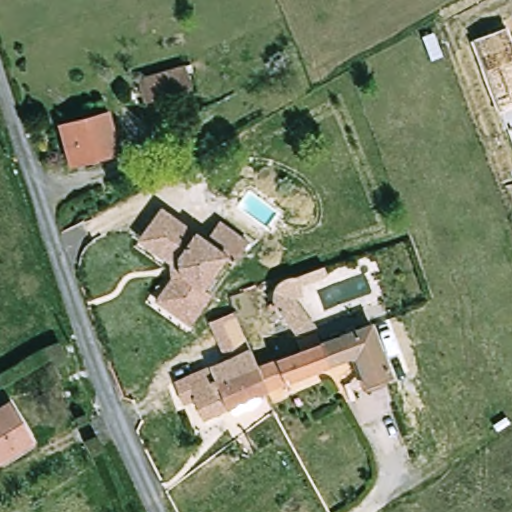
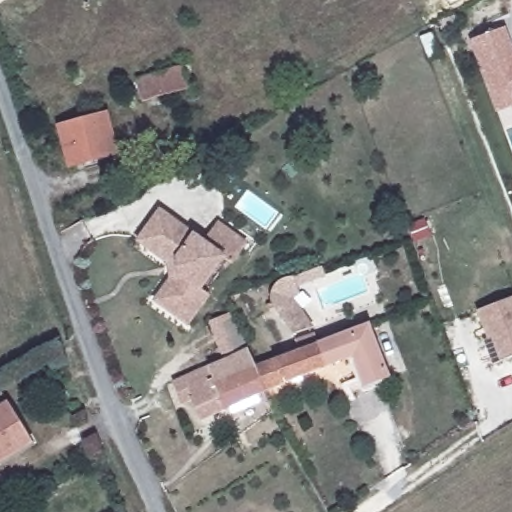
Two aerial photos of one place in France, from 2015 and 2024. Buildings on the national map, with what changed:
new [(512,41),(512,107),(496,113),(470,40),(507,26),(512,41)]
unchanged [(190,73),(184,75),(188,89),(143,103),(137,81),(188,66),(190,73)]
unchanged [(117,153),(68,166),(57,127),(107,114),(117,153)]
unchanged [(213,239),(223,225),(253,247),(238,269),(230,263),(224,270),(207,295),(215,300),(193,331),(162,309),(157,306),(173,283),(172,269),(140,246),(164,212),(171,217),(209,244),(213,239)]
unchanged [(268,309),(267,308),(267,305),(266,304),(266,303),(266,302),(266,300),(266,299),(267,297),(267,295),(267,294),(268,294),(269,290),(270,289),(271,288),(272,286),(275,284),(276,283),(277,282),(279,281),(280,281),(281,280),(283,280),(286,279),(288,279),(291,279),(296,291),(289,294),(301,324),(277,332),(268,309)]
new [(512,357),(500,362),(491,339),(487,340),(477,310),(512,297),(512,357)]
unchanged [(236,312),(241,327),(230,330),(229,327),(218,331),(214,319),(236,312)]
unchanged [(255,367),(298,351),(294,339),(315,332),(319,343),(330,339),(328,333),(336,330),(339,337),(368,324),(389,374),(364,384),(353,354),(265,391),(255,367)]
unchanged [(248,350),(255,367),(265,391),(200,419),(191,398),(182,402),(174,382),(248,350)]
unchanged [(31,443),(0,462),(0,391),(31,443)]
unchanged [(0,465),(0,463),(1,464),(0,465)]

